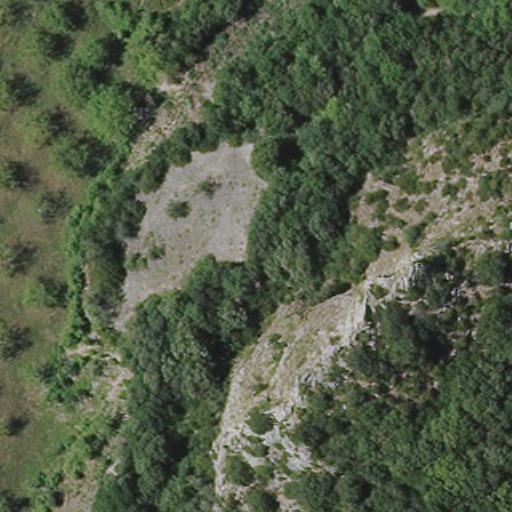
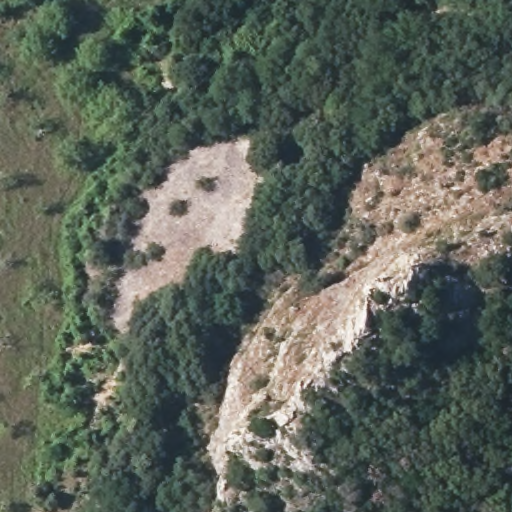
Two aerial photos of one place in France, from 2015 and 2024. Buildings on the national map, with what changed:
[]

